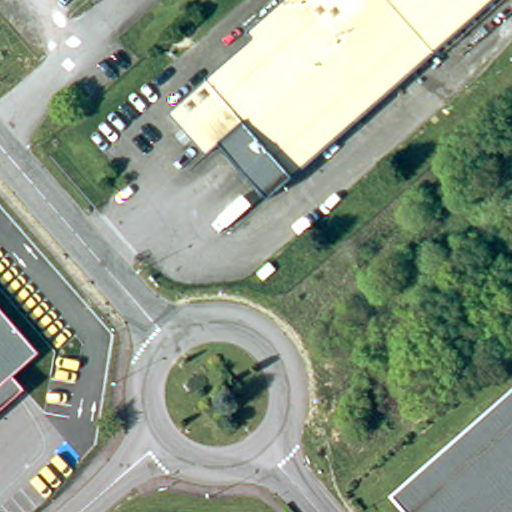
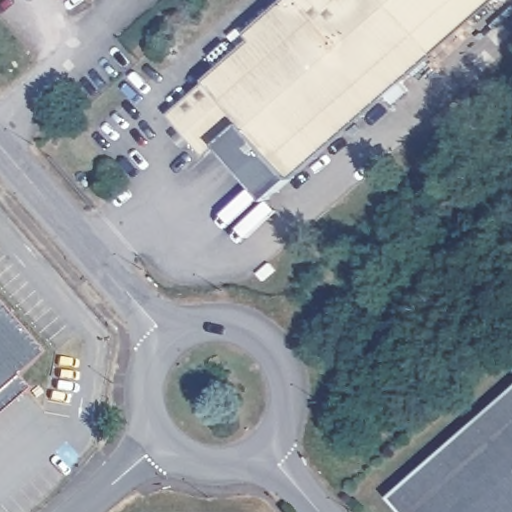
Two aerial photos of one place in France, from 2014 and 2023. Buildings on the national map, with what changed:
unchanged [(191,123),(178,108),(261,34),(253,24),(267,12),(272,15),(288,0),(498,0),(398,88),(277,195),(227,140),(215,151),(202,136),(193,143),(182,131),(191,123)]
unchanged [(10,372),(0,361),(0,302),(40,347),(10,372)]
unchanged [(0,361),(10,372),(0,381),(0,361)]
unchanged [(0,412),(0,381),(10,372),(25,390),(0,412)]
unchanged [(408,494),(427,477),(430,481),(512,409),(512,512),(423,512),(408,494)]

